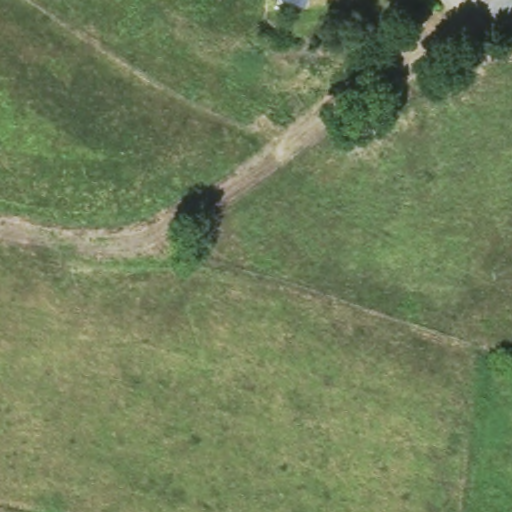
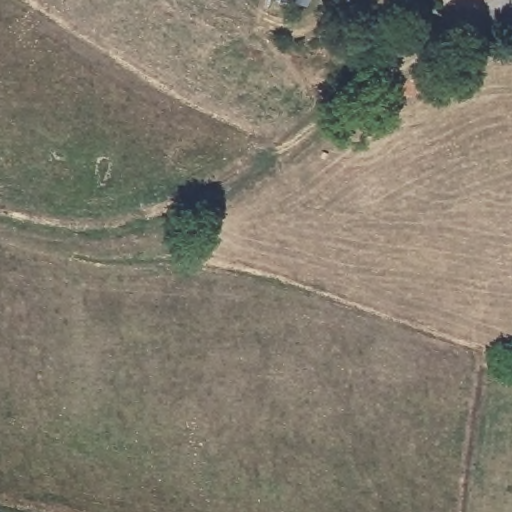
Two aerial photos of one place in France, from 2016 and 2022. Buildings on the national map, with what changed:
unchanged [(277,0),(312,0),(308,12),(277,0)]

